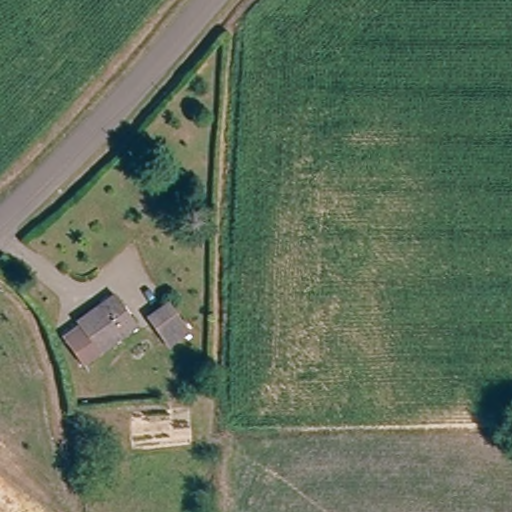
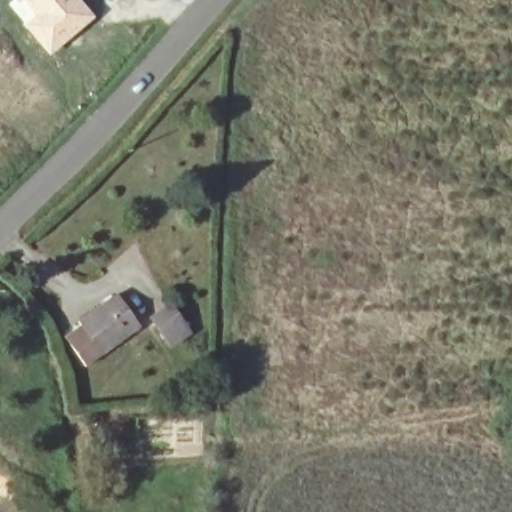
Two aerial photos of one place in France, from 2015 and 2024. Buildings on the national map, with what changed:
new [(81,0),(95,16),(49,56),(6,3),(9,0),(81,0)]
unchanged [(80,329),(75,322),(114,294),(139,328),(85,367),(65,340),(80,329)]
unchanged [(170,306),(189,333),(170,346),(150,319),(170,306)]

